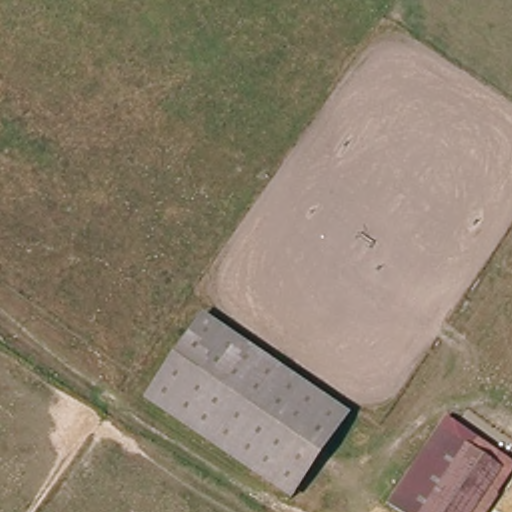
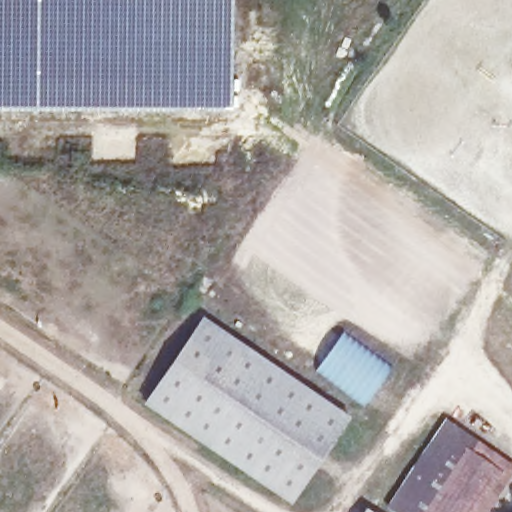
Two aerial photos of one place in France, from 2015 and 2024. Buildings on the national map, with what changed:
new [(0,0),(233,0),(233,110),(0,110),(0,0)]
unchanged [(205,321),(353,420),(295,505),(149,406),(205,321)]
new [(364,405),(317,370),(344,331),(393,366),(364,405)]
new [(394,512),(386,507),(445,418),(512,464),(512,474),(487,512),(394,512)]
demolished [(507,512),(461,512),(494,463),(512,475),(512,504),(507,512)]
new [(375,512),(364,512),(367,507),(375,512)]

